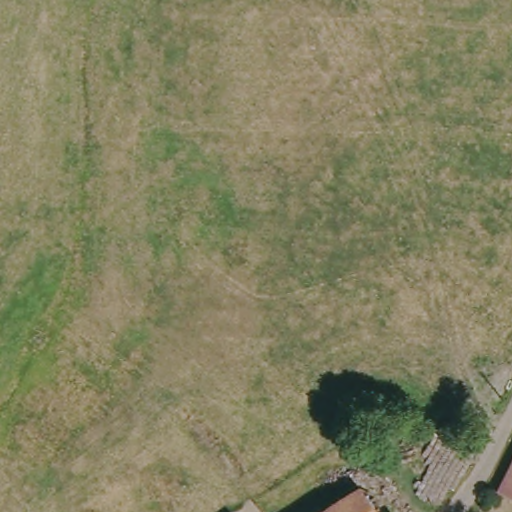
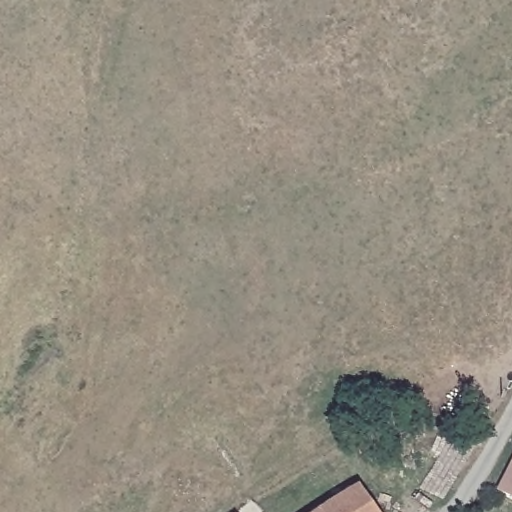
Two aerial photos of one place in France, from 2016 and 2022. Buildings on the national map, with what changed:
unchanged [(316,486),(355,459),(368,479),(328,509),(316,486)]
unchanged [(501,494),(512,473),(512,499),(501,494)]
unchanged [(368,479),(389,512),(324,512),(328,509),(368,479)]

